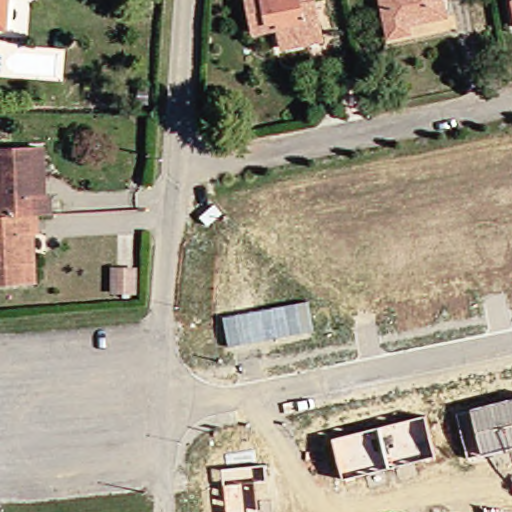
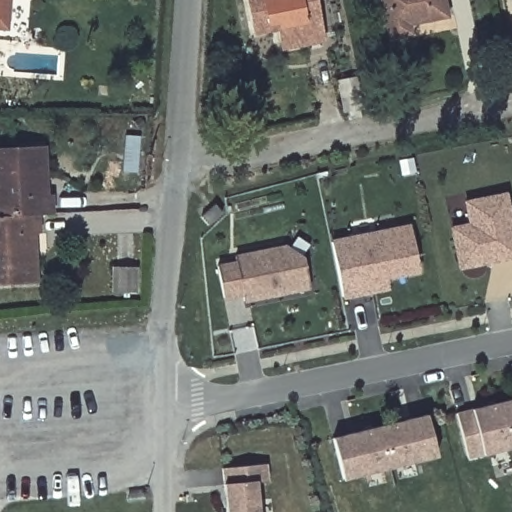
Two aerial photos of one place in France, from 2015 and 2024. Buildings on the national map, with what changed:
unchanged [(0,26),(0,0),(15,0),(14,27),(0,26)]
unchanged [(324,0),(332,37),(282,46),(276,31),(265,31),(259,0),(324,0)]
unchanged [(418,24),(420,34),(398,37),(390,0),(449,0),(451,15),(418,24)]
unchanged [(2,148),(39,147),(52,147),(51,197),(55,197),(55,210),(2,213),(2,148)]
new [(462,269),(454,228),(472,225),(468,202),(508,195),(512,215),(512,259),(501,261),(482,265),(462,269)]
unchanged [(0,284),(0,213),(2,213),(55,210),(55,217),(39,216),(38,231),(39,287),(28,285),(0,284)]
new [(388,280),(390,291),(344,300),(332,242),(411,225),(419,275),(388,280)]
new [(238,262),(237,256),(287,247),(306,259),(311,288),(246,301),(244,294),(226,298),(220,266),(238,262)]
unchanged [(467,458),(457,411),(512,397),(512,446),(467,458)]
unchanged [(427,415),(437,457),(344,481),(334,438),(427,415)]
unchanged [(225,485),(222,469),(267,464),(268,480),(257,481),(260,512),(227,512),(225,485)]

